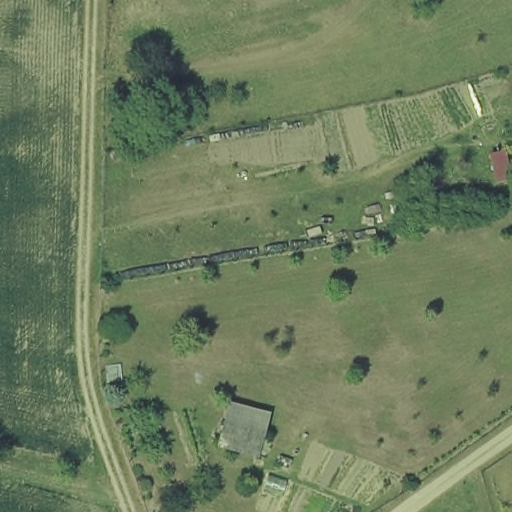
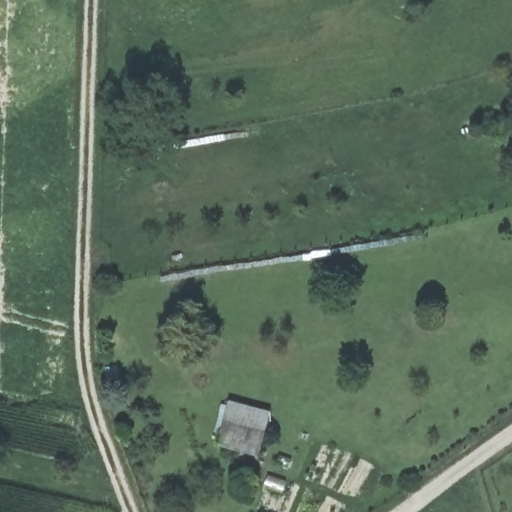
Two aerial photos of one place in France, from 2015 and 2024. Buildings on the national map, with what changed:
unchanged [(231,402),(274,413),(261,461),(219,449),(231,402)]

